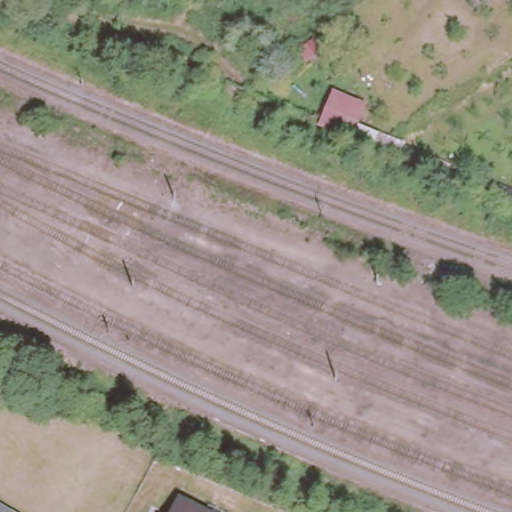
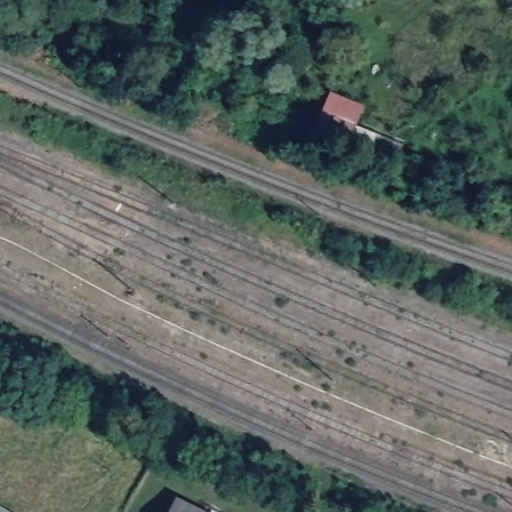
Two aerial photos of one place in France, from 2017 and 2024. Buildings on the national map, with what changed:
unchanged [(366,102),(360,124),(402,141),(396,156),(318,129),(330,89),(366,102)]
unchanged [(209,512),(170,512),(177,496),(209,512)]
unchanged [(0,512),(0,505),(12,512),(0,512)]

